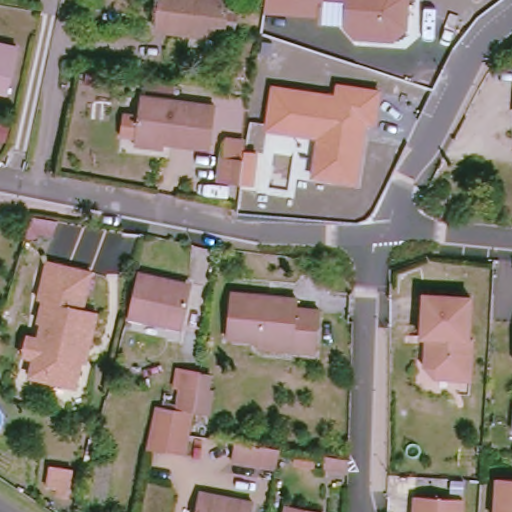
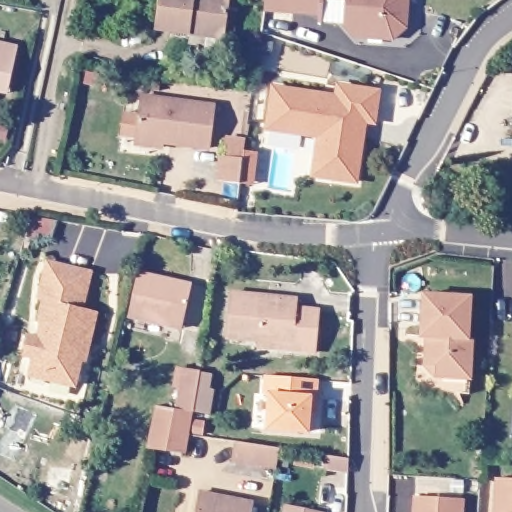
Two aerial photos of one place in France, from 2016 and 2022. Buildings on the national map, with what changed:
unchanged [(206,54),(207,38),(155,30),(159,0),(231,0),(223,56),(206,54)]
unchanged [(392,42),(354,37),(344,25),(318,22),(318,18),(264,12),(265,0),(408,0),(405,33),(392,42)]
unchanged [(9,94),(0,92),(0,45),(18,49),(9,94)]
unchanged [(333,94),(334,82),(381,91),(376,127),(364,125),(357,184),(311,177),(316,137),(264,129),(271,85),(333,94)]
unchanged [(135,148),(136,140),(123,137),(125,115),(139,116),(143,97),(216,107),(211,150),(164,145),(163,151),(135,148)]
unchanged [(221,182),(225,158),(227,142),(246,145),(245,160),(241,185),(221,182)]
unchanged [(23,334),(35,337),(38,322),(35,321),(41,302),(36,300),(45,263),(59,266),(69,269),(87,273),(81,298),(78,308),(93,312),(84,350),(80,350),(71,386),(43,378),(44,372),(28,368),(30,356),(18,353),(23,334)]
unchanged [(186,285),(186,290),(178,330),(123,317),(133,274),(161,280),(186,285)]
unchanged [(420,332),(423,332),(425,290),(472,292),(469,333),(474,333),(471,390),(426,386),(417,376),(420,332)]
unchanged [(258,342),(226,339),(231,295),(296,300),(296,308),(319,312),(315,353),(293,351),(258,348),(258,342)]
unchanged [(151,405),(172,410),(179,371),(196,374),(206,375),(203,388),(206,390),(201,415),(189,413),(179,455),(143,448),(151,405)]
new [(266,376),(318,381),(316,399),(311,400),(309,433),(267,430),(270,396),(265,395),(266,376)]
unchanged [(280,450),(276,470),(233,462),(237,443),(280,450)]
unchanged [(349,459),(349,473),(325,470),(327,455),(349,459)]
unchanged [(73,470),(68,490),(46,484),(51,465),(73,470)]
unchanged [(512,484),(512,512),(496,512),(498,483),(512,484)]
unchanged [(253,505),(252,512),(197,512),(201,494),(253,505)]
unchanged [(417,496),(464,499),(463,512),(415,512),(417,496)]
unchanged [(282,506),(313,512),(281,512),(282,506)]

